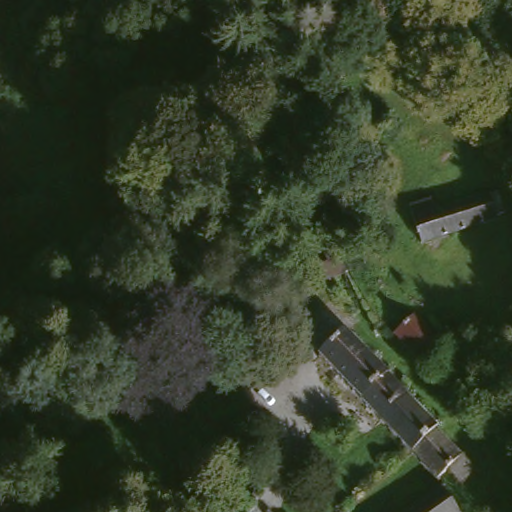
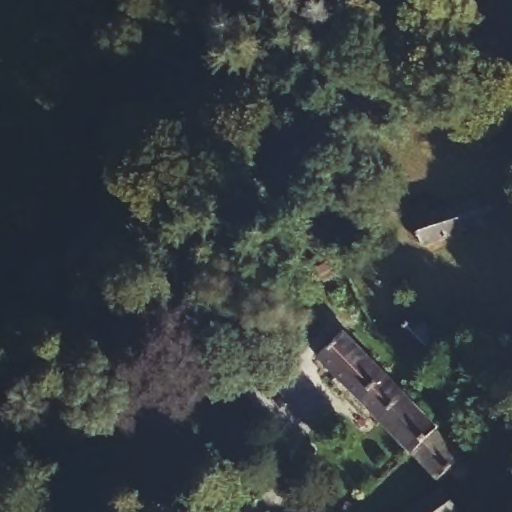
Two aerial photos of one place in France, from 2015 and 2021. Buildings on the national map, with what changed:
unchanged [(411,198),(438,193),(441,205),(496,195),(501,220),(418,237),(411,198)]
unchanged [(361,243),(366,254),(346,261),(328,226),(351,220),(361,243)]
unchanged [(407,452),(321,356),(348,330),(434,430),(407,452)]
unchanged [(468,469),(459,477),(447,465),(439,471),(446,481),(440,486),(459,512),(401,512),(418,499),(411,488),(426,474),(407,452),(434,430),(468,469)]

